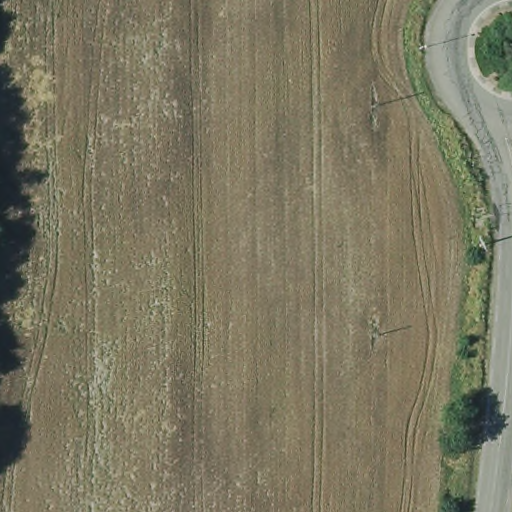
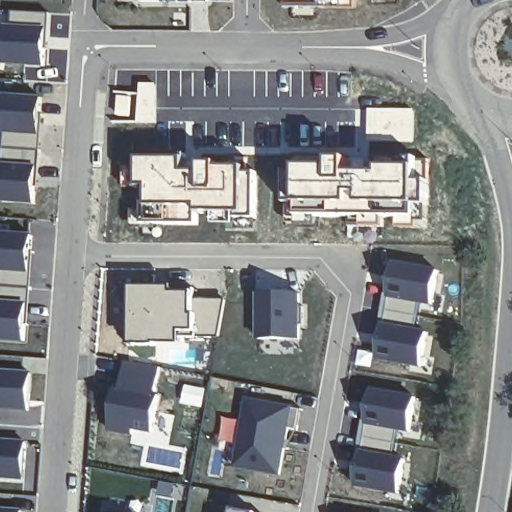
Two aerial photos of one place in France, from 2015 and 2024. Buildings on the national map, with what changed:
new [(54,11),(54,69),(8,68),(12,9),(54,11)]
new [(46,97),(46,154),(5,151),(4,95),(46,97)]
new [(119,95),(130,96),(129,115),(118,114),(119,95)]
new [(138,208),(135,154),(189,155),(189,171),(200,171),(201,162),(217,162),(217,166),(247,165),(247,212),(200,212),(200,227),(132,225),(131,209),(138,208)]
new [(297,155),(352,157),(419,157),(419,175),(426,175),(427,205),(417,204),(415,219),(396,217),(295,219),(297,155)]
new [(29,287),(0,285),(0,230),(32,232),(29,287)]
new [(387,297),(395,261),(437,269),(431,307),(421,305),(417,327),(427,330),(421,367),(375,358),(382,321),(387,297)]
new [(182,295),(201,295),(201,300),(229,300),(222,337),(194,338),(195,348),(139,350),(139,288),(182,288),(182,295)]
new [(289,290),(289,293),(297,293),(297,306),(302,306),(302,324),(297,324),(297,338),(259,337),(259,290),(289,290)]
new [(23,341),(0,339),(0,299),(27,301),(23,341)]
new [(131,432),(108,428),(116,387),(120,387),(125,360),(159,366),(154,393),(159,395),(152,430),(151,436),(131,432)]
new [(27,412),(0,410),(0,369),(32,372),(27,412)]
new [(365,423),(372,387),(415,395),(407,432),(398,431),(394,455),(404,456),(397,494),(355,487),(360,449),(365,423)]
new [(302,408),(302,409),(300,409),(296,429),(287,427),(279,473),(235,465),(247,398),(302,408)]
new [(296,428),(287,448),(284,447),(287,427),(296,428)]
new [(22,481),(0,479),(0,438),(26,441),(22,481)]
new [(21,512),(0,512),(0,507),(22,508),(21,512)]
new [(247,512),(232,512),(232,509),(247,512)]
new [(122,512),(108,512),(108,510),(122,512)]

